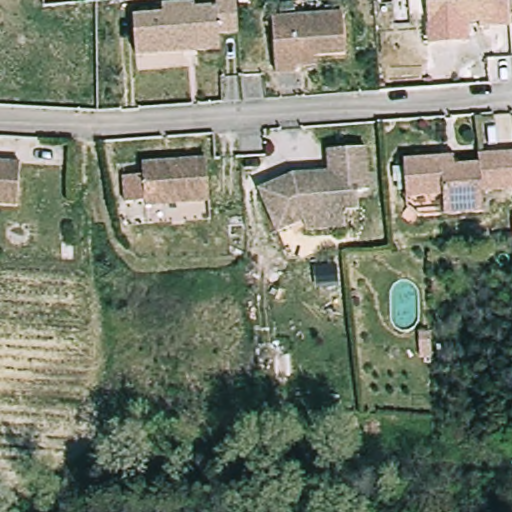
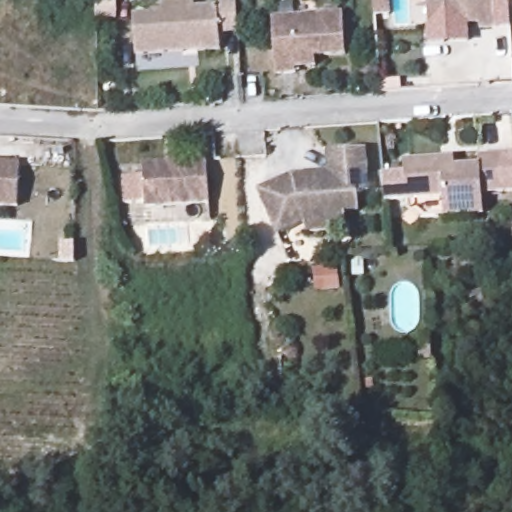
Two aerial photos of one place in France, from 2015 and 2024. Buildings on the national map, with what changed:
unchanged [(219,36),(221,55),(136,59),(134,18),(161,17),(163,7),(196,6),(196,12),(218,11),(218,2),(239,0),(241,35),(219,36)]
unchanged [(373,18),(371,0),(387,0),(388,16),(373,18)]
unchanged [(477,30),(476,22),(427,25),(426,0),(493,0),(495,28),(477,30)]
unchanged [(344,53),(316,55),(317,67),(296,69),(296,76),(278,76),(274,22),(342,17),(344,53)]
unchanged [(288,182),(319,180),(318,153),(356,150),(361,195),(346,196),(346,206),(335,207),(334,211),(293,215),(278,224),(263,199),(288,182)]
unchanged [(441,207),(439,198),(415,199),(411,164),(441,161),(442,171),(479,169),(478,157),(498,155),(512,154),(512,190),(500,191),(482,192),(483,205),(441,207)]
unchanged [(132,175),(151,174),(151,161),(214,156),(219,205),(154,210),(153,200),(133,201),(132,175)]
unchanged [(17,205),(0,204),(0,159),(21,160),(17,205)]

